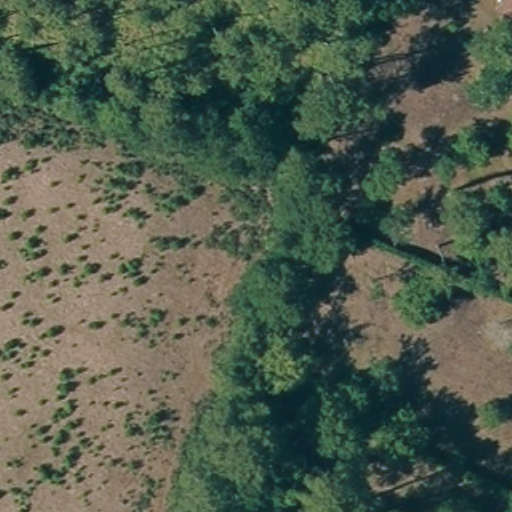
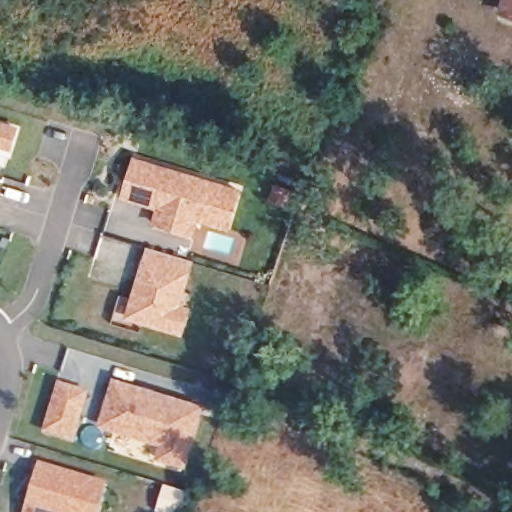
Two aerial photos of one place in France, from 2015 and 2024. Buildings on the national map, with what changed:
unchanged [(501,0),(512,0),(512,24),(495,17),(501,0)]
new [(19,125),(12,150),(0,147),(0,149),(0,120),(19,125)]
new [(193,236),(153,222),(157,207),(123,196),(135,155),(243,187),(230,229),(198,220),(193,236)]
new [(183,304),(192,307),(184,335),(127,317),(144,256),(147,246),(194,259),(192,270),(183,304)]
new [(114,377),(204,404),(187,466),(158,458),(161,445),(100,424),(114,377)]
new [(44,430),(59,380),(90,390),(75,440),(44,430)]
new [(108,482),(100,512),(26,512),(40,461),(108,482)]

